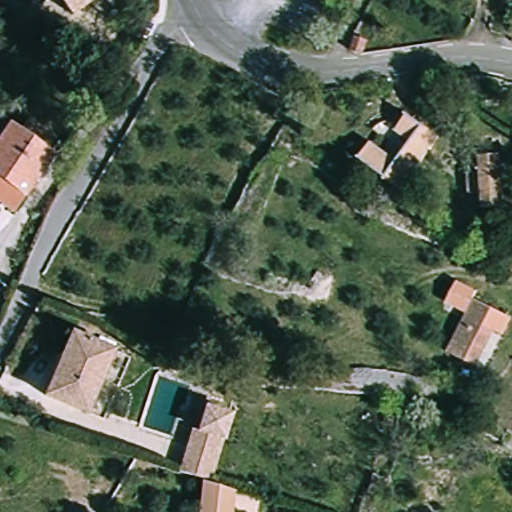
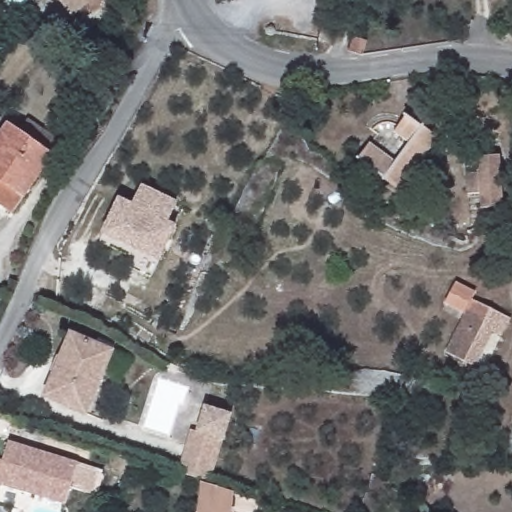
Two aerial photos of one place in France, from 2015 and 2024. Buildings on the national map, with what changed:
unchanged [(58,0),(91,0),(72,16),(58,0)]
unchanged [(366,41),(361,56),(350,53),(355,38),(366,41)]
unchanged [(400,191),(358,160),(370,144),(395,162),(408,144),(398,136),(393,133),(405,115),(410,119),(437,139),(400,191)]
unchanged [(52,151),(43,164),(46,165),(7,223),(0,218),(0,139),(2,136),(13,144),(22,131),(52,151)]
unchanged [(493,156),(497,208),(477,209),(475,194),(462,194),(461,174),(474,173),(473,158),(493,156)]
new [(116,203),(130,210),(139,190),(174,208),(165,228),(172,232),(155,265),(99,238),(116,203)]
unchanged [(465,363),(445,353),(466,313),(445,303),(455,282),(475,293),(472,299),(510,319),(502,335),(492,330),(482,352),(474,368),(465,363)]
unchanged [(85,414),(44,397),(70,334),(112,352),(85,414)]
unchanged [(205,409),(230,416),(209,483),(201,481),(178,474),(191,431),(198,433),(205,409)]
new [(12,441),(80,464),(66,505),(0,482),(0,458),(5,460),(12,441)]
unchanged [(201,481),(209,483),(232,490),(229,512),(198,512),(201,481)]

